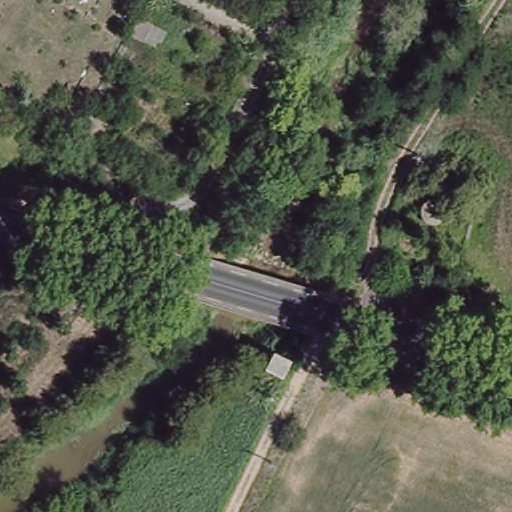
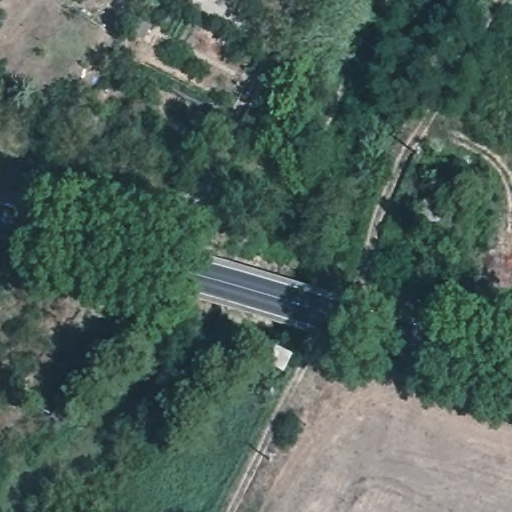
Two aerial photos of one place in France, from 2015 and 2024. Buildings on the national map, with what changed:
unchanged [(149,56),(118,41),(138,6),(161,21),(149,56)]
unchanged [(121,107),(103,148),(70,126),(92,95),(121,107)]

